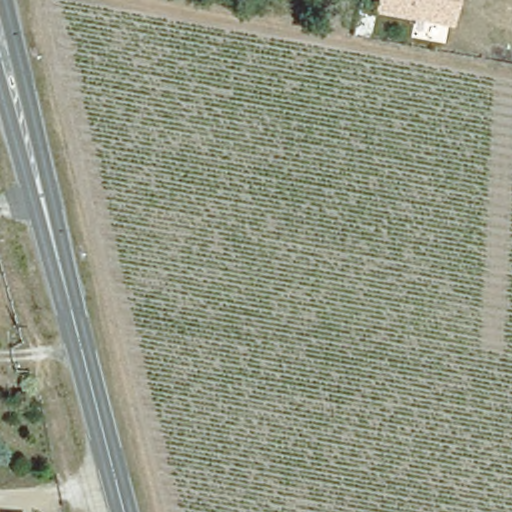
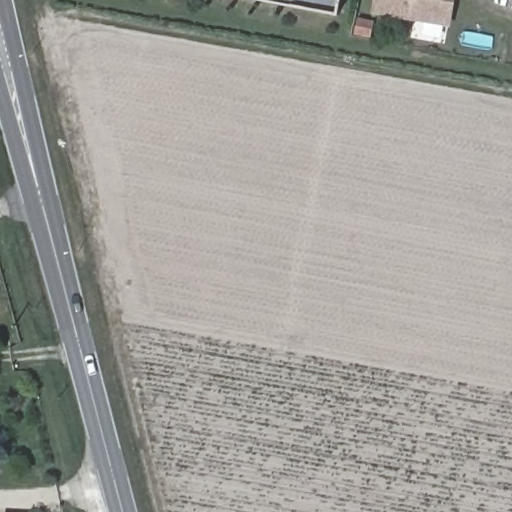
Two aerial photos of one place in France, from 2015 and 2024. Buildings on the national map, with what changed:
new [(262,0),(339,0),(336,14),(262,0)]
unchanged [(373,11),(375,0),(449,0),(444,25),(373,11)]

